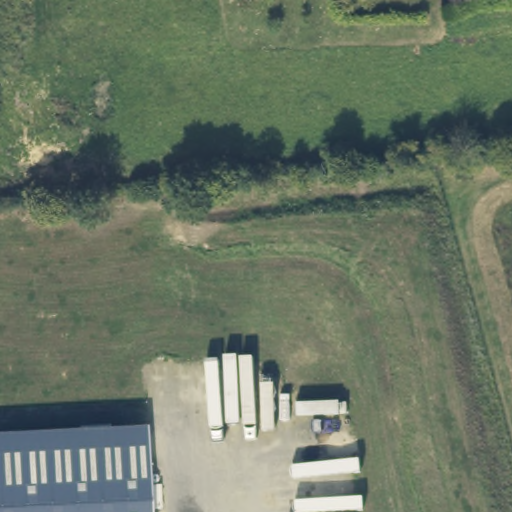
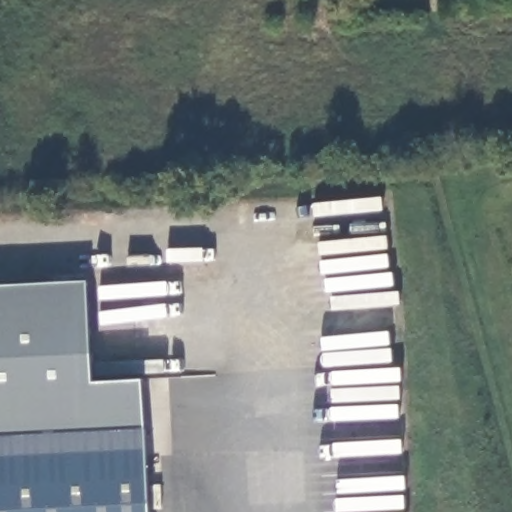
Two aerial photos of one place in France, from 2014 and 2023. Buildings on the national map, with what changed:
new [(0,287),(87,283),(92,355),(92,383),(142,381),(144,425),(0,432),(0,287)]
unchanged [(150,512),(0,512),(0,432),(146,425),(150,512)]

